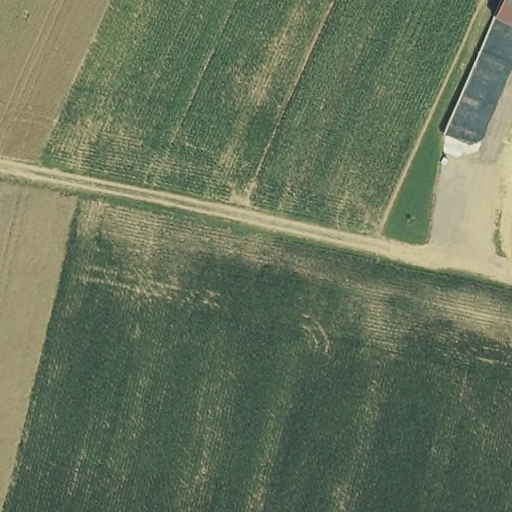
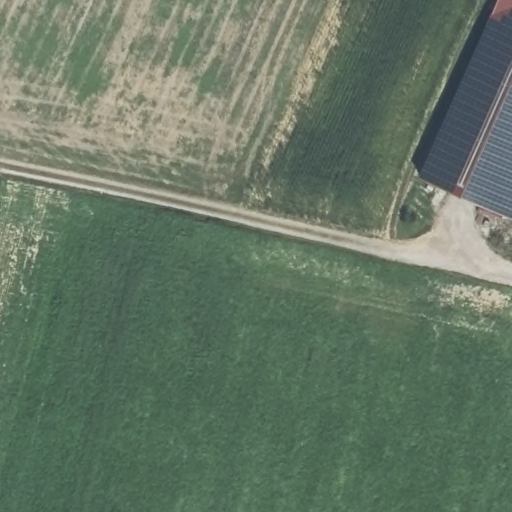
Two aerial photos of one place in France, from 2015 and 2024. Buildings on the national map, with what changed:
unchanged [(500,0),(512,0),(512,23),(494,15),(500,0)]
new [(418,178),(494,15),(512,23),(512,219),(418,178)]

